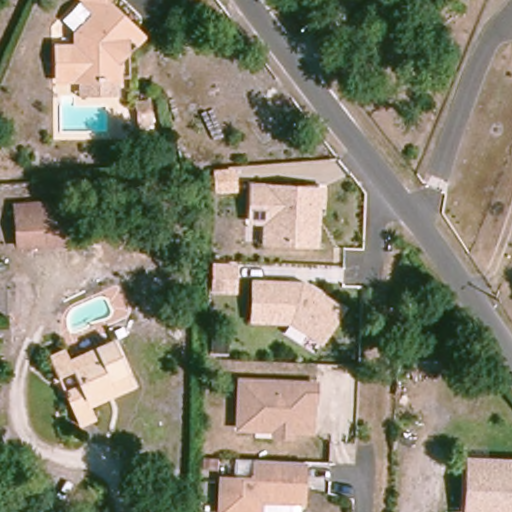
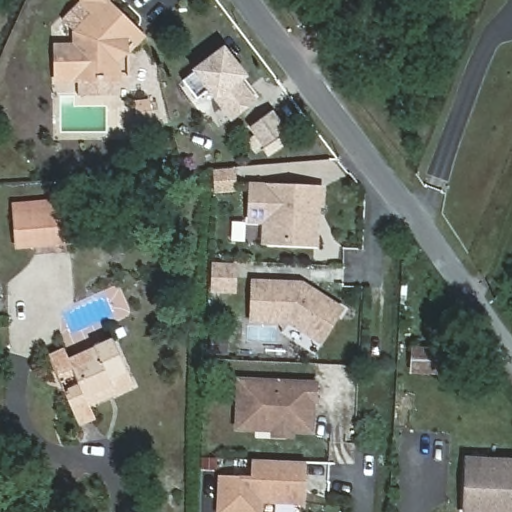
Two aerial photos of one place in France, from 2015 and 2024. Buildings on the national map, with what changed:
unchanged [(56,78),(56,46),(79,47),(79,35),(66,22),(87,0),(108,0),(107,0),(140,32),(121,53),(121,77),(80,78),(56,78)]
new [(227,51),(247,78),(242,82),(257,102),(235,119),(213,91),(200,101),(186,82),(227,51)]
unchanged [(119,96),(78,98),(78,81),(120,79),(119,96)]
unchanged [(232,190),(217,189),(217,174),(232,175),(232,190)]
unchanged [(261,222),(246,221),(247,186),(317,188),(317,204),(313,204),(312,214),(312,228),(311,244),(273,243),(260,243),(261,222)]
unchanged [(16,244),(14,218),(13,206),(66,201),(67,213),(69,240),(16,244)]
unchanged [(235,267),(234,292),(213,291),(214,266),(235,267)]
unchanged [(302,281),(341,306),(320,338),(290,318),(252,316),(254,278),(302,281)]
unchanged [(96,418),(80,425),(49,357),(64,350),(69,362),(113,343),(133,386),(117,394),(90,406),(96,418)]
unchanged [(438,349),(437,375),(411,375),(412,348),(438,349)]
unchanged [(457,360),(455,371),(440,368),(443,357),(457,360)]
unchanged [(274,437),(274,431),(237,429),(239,382),(315,386),(314,403),(312,403),(312,415),(311,433),(290,432),(290,438),(274,437)]
unchanged [(464,496),(466,457),(512,460),(512,512),(463,512),(464,496)]
unchanged [(301,507),(259,504),(259,512),(219,512),(221,480),(253,483),(255,463),(304,467),(301,507)]

